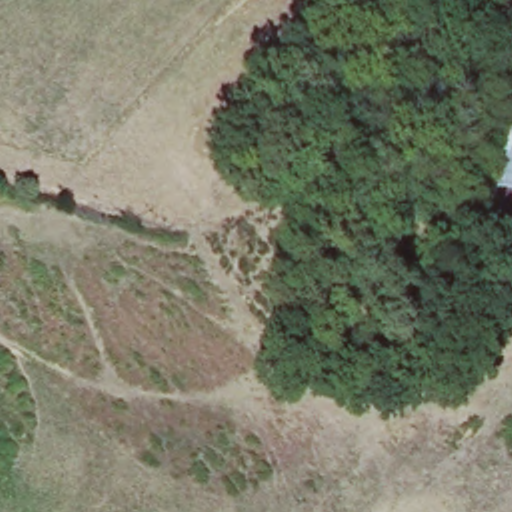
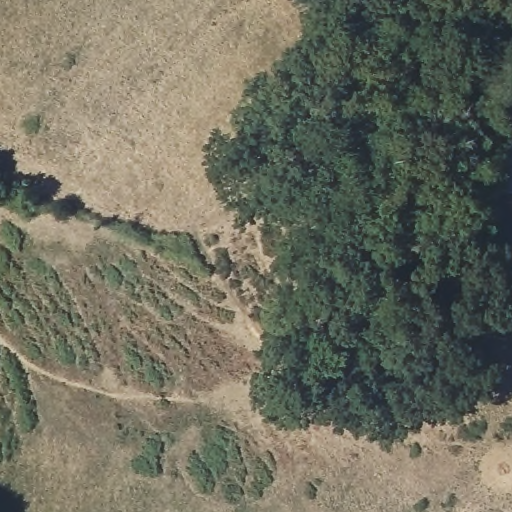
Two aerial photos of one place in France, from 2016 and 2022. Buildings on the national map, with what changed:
unchanged [(512,234),(497,232),(508,147),(512,147),(512,234)]

